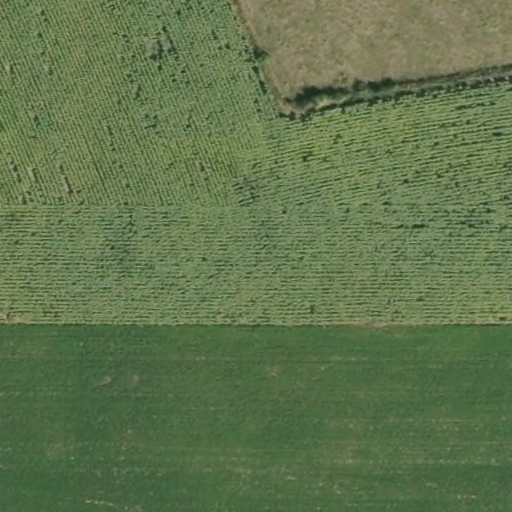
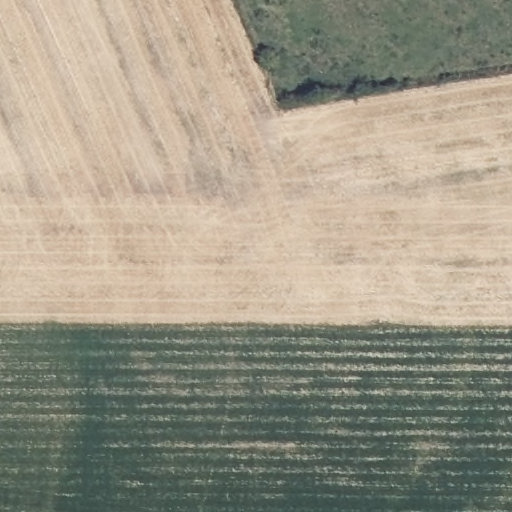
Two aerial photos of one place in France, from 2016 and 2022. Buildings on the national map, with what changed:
[]

